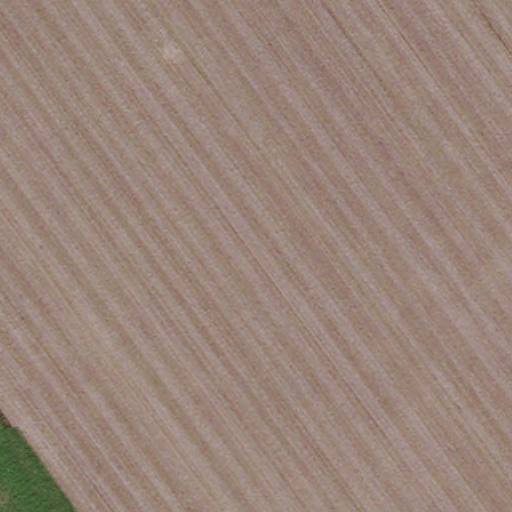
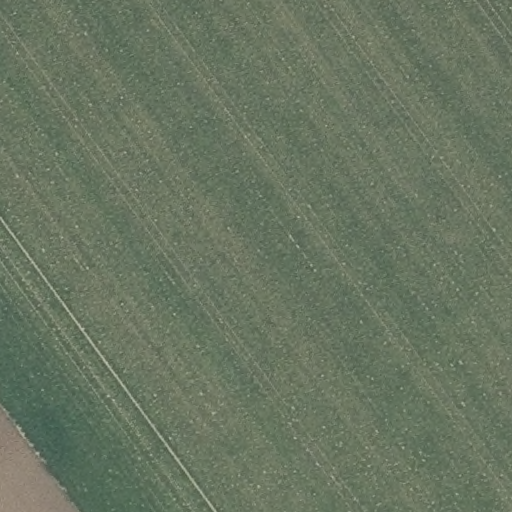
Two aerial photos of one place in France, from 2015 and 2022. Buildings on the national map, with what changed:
[]

